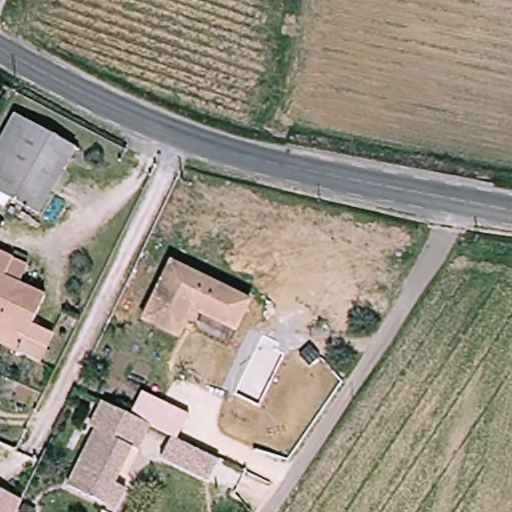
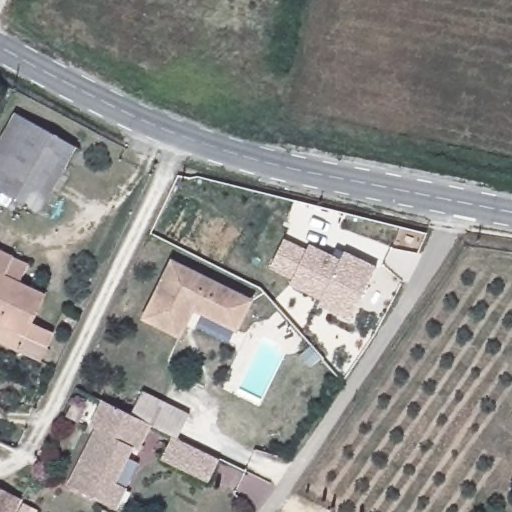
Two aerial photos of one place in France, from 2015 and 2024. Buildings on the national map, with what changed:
unchanged [(46,211),(0,185),(0,150),(20,111),(31,117),(84,147),(46,211)]
new [(289,286),(293,279),(274,270),(288,242),(338,266),(344,253),(376,268),(350,322),(318,306),(289,286)]
unchanged [(16,260),(31,268),(24,285),(49,298),(34,330),(51,340),(37,367),(20,358),(23,352),(0,341),(0,252),(16,260)]
unchanged [(255,299),(238,330),(196,310),(181,335),(147,317),(175,260),(255,299)]
unchanged [(154,417),(134,408),(143,390),(189,413),(179,441),(220,460),(208,483),(160,461),(171,439),(150,426),(154,417)]
unchanged [(120,496),(114,492),(74,477),(100,417),(97,416),(106,395),(154,417),(144,440),(139,437),(122,473),(129,477),(120,496)]
unchanged [(21,498),(19,502),(14,512),(0,512),(0,488),(21,498)]

